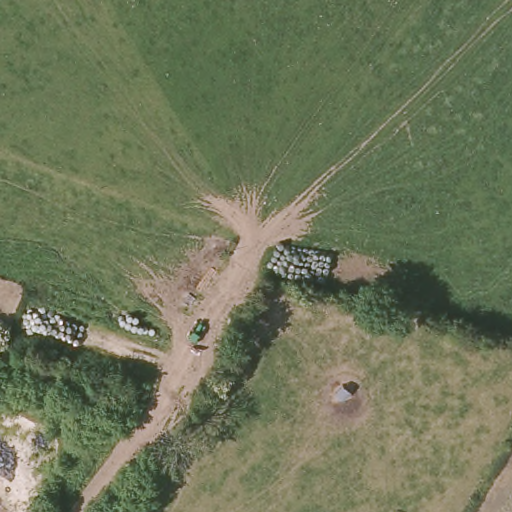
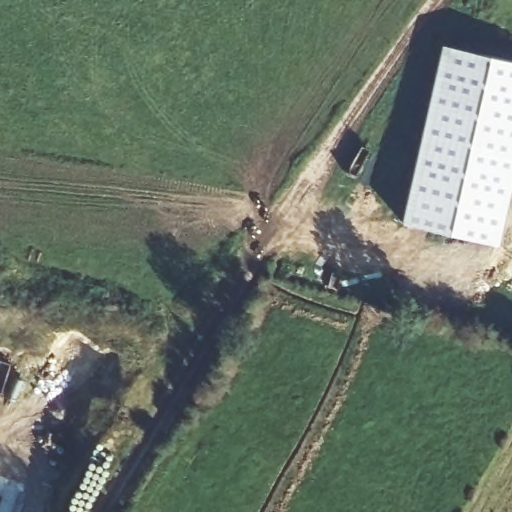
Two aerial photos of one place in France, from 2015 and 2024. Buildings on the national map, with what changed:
new [(442,46),(512,61),(512,186),(498,245),(402,222),(442,46)]

